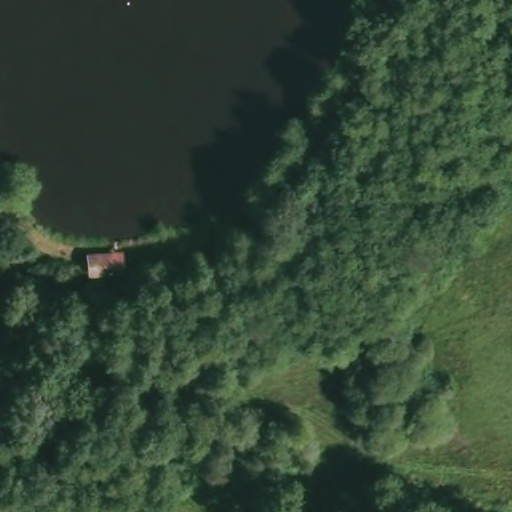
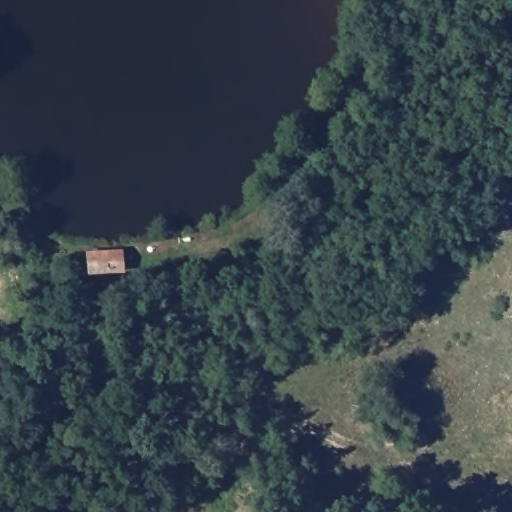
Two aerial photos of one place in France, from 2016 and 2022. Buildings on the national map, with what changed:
unchanged [(92,250),(128,250),(130,271),(92,272),(92,250)]

